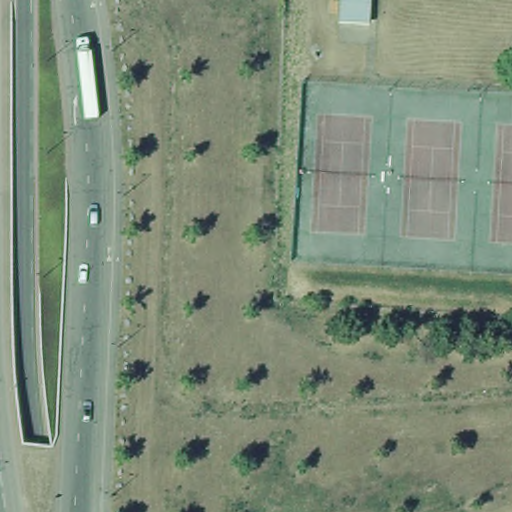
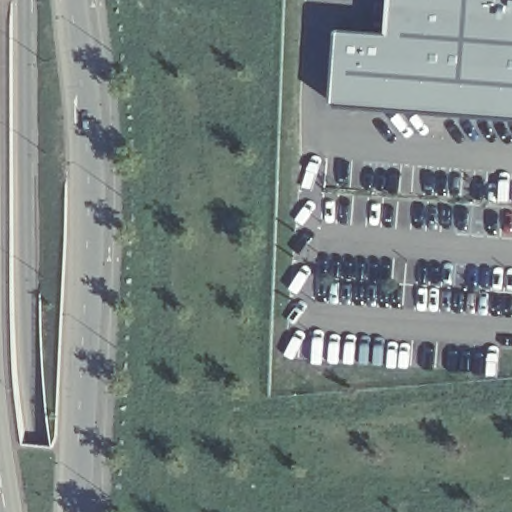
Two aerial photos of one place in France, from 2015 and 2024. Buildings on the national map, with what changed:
new [(336,100),(342,27),(392,32),(394,0),(512,0),(512,113),(336,100)]
demolished [(362,29),(338,29),(339,0),(366,0),(362,29)]

